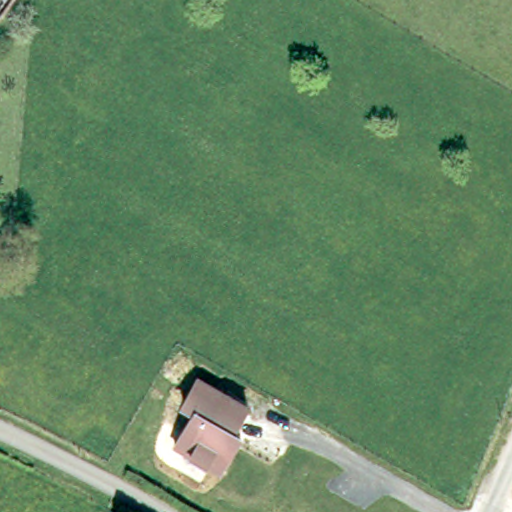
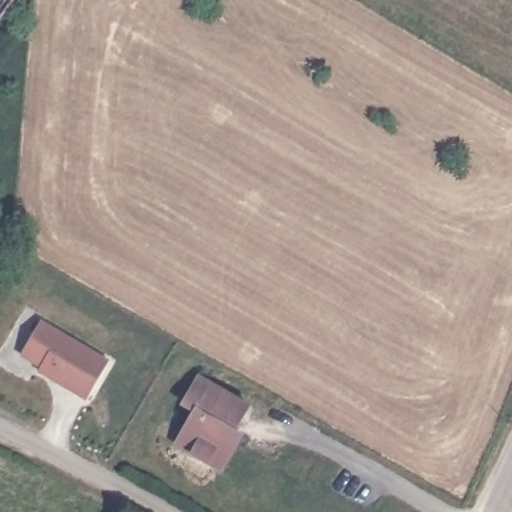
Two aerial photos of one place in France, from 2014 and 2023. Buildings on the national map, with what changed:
new [(43,320),(110,360),(87,400),(39,371),(41,367),(21,356),(43,320)]
unchanged [(197,411),(197,410),(185,403),(200,378),(250,407),(236,432),(243,437),(242,438),(223,472),(177,445),(197,411)]

